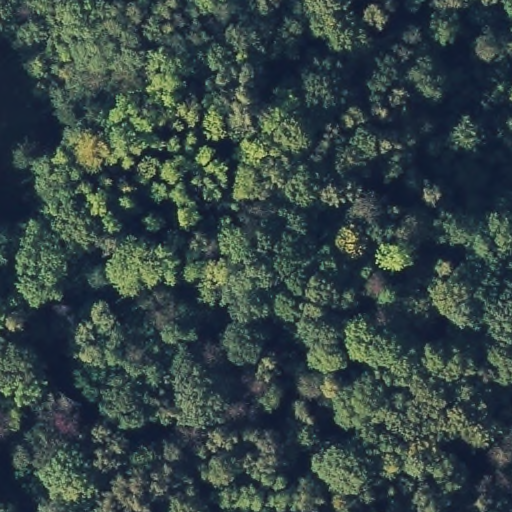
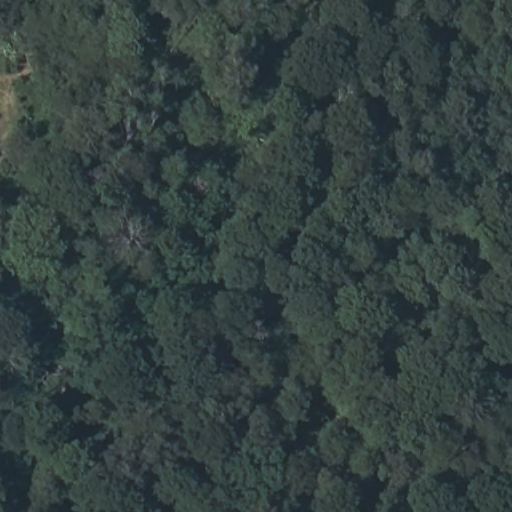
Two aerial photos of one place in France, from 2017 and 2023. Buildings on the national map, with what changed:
unchanged [(76,0),(102,67),(42,95),(7,0),(76,0)]

